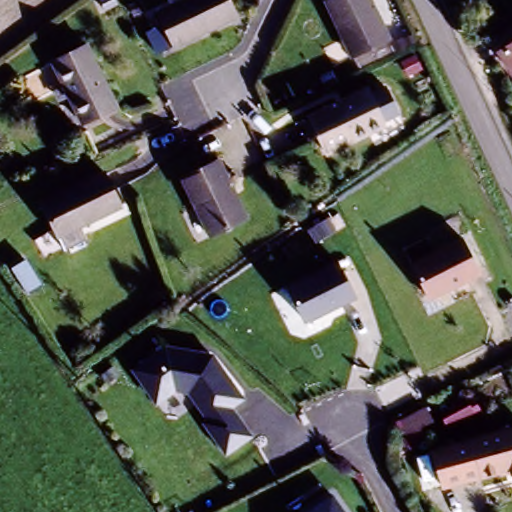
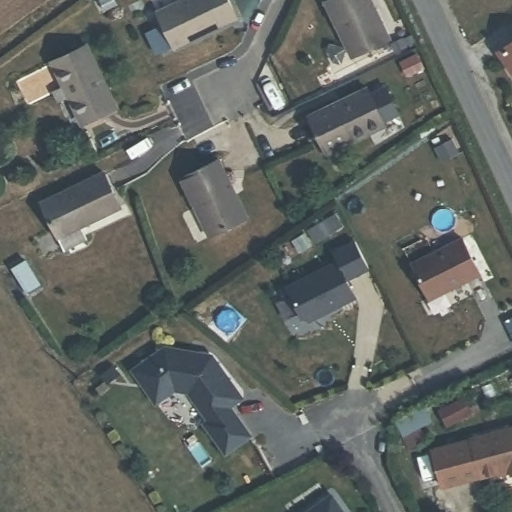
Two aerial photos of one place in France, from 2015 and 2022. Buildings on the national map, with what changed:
unchanged [(151,17),(184,0),(229,0),(237,21),(174,54),(151,17)]
unchanged [(347,59),(318,0),(367,0),(386,40),(347,59)]
unchanged [(487,56),(512,39),(512,81),(510,83),(487,56)]
unchanged [(81,47),(112,109),(77,126),(47,64),(81,47)]
unchanged [(362,91),(381,129),(324,157),(305,119),(362,91)]
unchanged [(219,162),(246,218),(207,239),(178,181),(219,162)]
unchanged [(84,232),(89,242),(62,252),(38,209),(106,168),(123,212),(84,232)]
unchanged [(464,237),(483,277),(427,303),(409,266),(464,237)]
unchanged [(337,261),(357,301),(309,325),(302,320),(286,287),(337,261)]
unchanged [(164,346),(213,355),(244,400),(231,408),(251,439),(225,457),(201,423),(205,420),(188,394),(175,394),(154,406),(130,370),(164,346)]
unchanged [(440,410),(468,398),(479,417),(449,431),(440,410)]
unchanged [(397,425),(423,407),(432,422),(403,440),(397,425)]
unchanged [(512,471),(438,486),(434,449),(512,433),(512,471)]
unchanged [(344,512),(307,512),(331,495),(344,512)]

